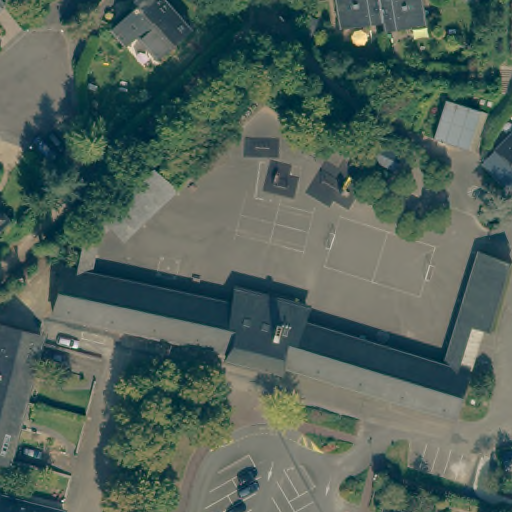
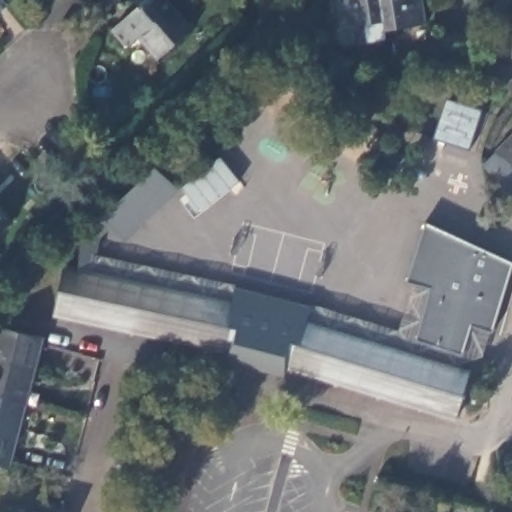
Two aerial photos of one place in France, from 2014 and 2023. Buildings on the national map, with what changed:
unchanged [(0,11),(0,0),(5,6),(0,11)]
unchanged [(125,5),(131,0),(164,0),(188,29),(156,57),(136,35),(123,46),(108,30),(130,10),(125,5)]
unchanged [(341,30),(337,0),(380,0),(383,24),(341,30)]
unchanged [(423,0),(427,27),(385,34),(383,24),(380,0),(423,0)]
unchanged [(486,169),(503,153),(512,144),(512,195),(486,169)]
unchanged [(94,232),(161,166),(183,190),(132,237),(120,225),(109,236),(101,271),(86,267),(94,232)]
unchanged [(0,232),(0,206),(13,220),(0,232)]
new [(408,281),(427,224),(512,263),(512,265),(492,330),(470,323),(463,353),(418,338),(432,287),(408,281)]
unchanged [(480,370),(467,415),(376,387),(299,364),(244,350),(211,342),(143,327),(60,310),(72,263),(86,267),(101,271),(244,301),(247,287),(315,303),(313,317),(452,360),(467,366),(480,370)]
unchanged [(28,381),(23,380),(16,403),(0,399),(0,331),(38,341),(28,381)]
unchanged [(10,427),(16,428),(5,468),(0,467),(0,399),(16,403),(10,427)]
unchanged [(0,508),(2,501),(48,512),(0,512),(0,508)]
unchanged [(385,507),(402,512),(384,512),(385,507)]

